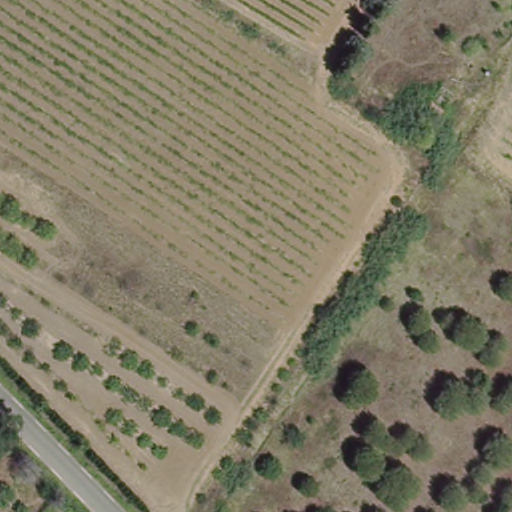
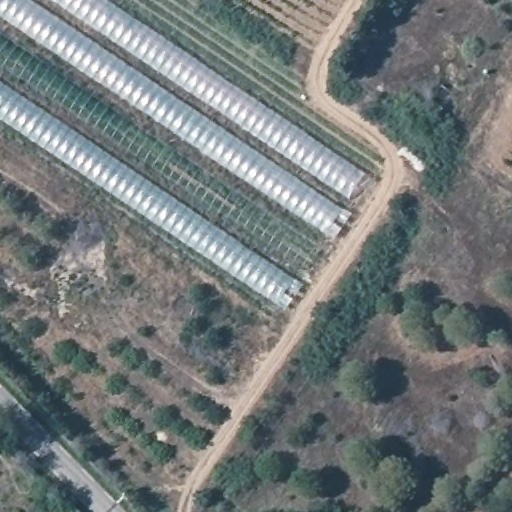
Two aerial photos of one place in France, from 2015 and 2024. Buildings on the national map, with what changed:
new [(0,19),(0,0),(26,0),(355,219),(337,244),(0,19)]
new [(48,0),(102,0),(368,179),(351,204),(48,0)]
new [(0,68),(0,37),(326,255),(311,276),(0,68)]
demolished [(432,131),(412,112),(435,81),(455,98),(432,131)]
new [(288,315),(0,122),(0,86),(305,290),(288,315)]

